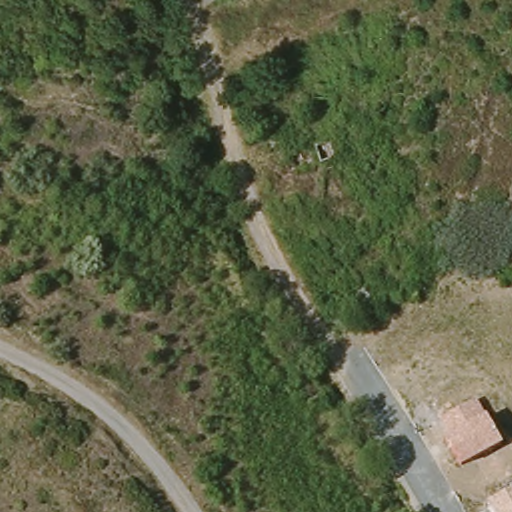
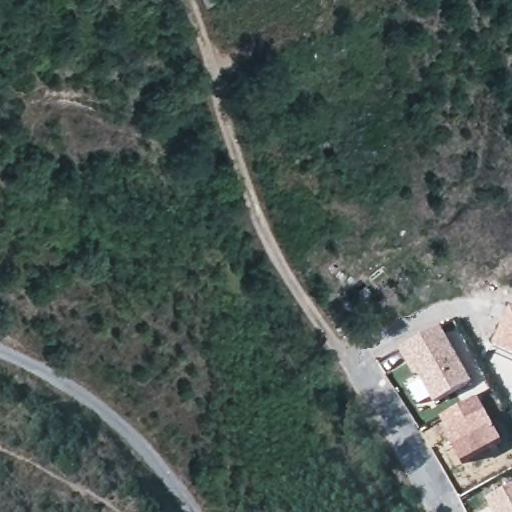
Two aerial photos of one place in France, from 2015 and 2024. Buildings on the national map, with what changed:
unchanged [(205,5),(203,0),(212,0),(205,5)]
unchanged [(316,161),(310,143),(330,138),(336,156),(316,161)]
new [(512,307),(512,351),(493,343),(510,306),(512,307)]
new [(471,380),(435,401),(420,374),(415,376),(400,348),(440,325),(471,380)]
unchanged [(445,434),(448,433),(440,416),(477,397),(486,414),(501,443),(460,464),(445,434)]
unchanged [(495,512),(488,501),(512,488),(512,512),(495,512)]

